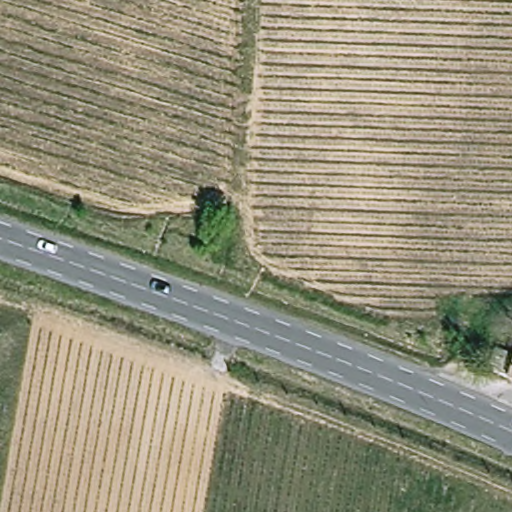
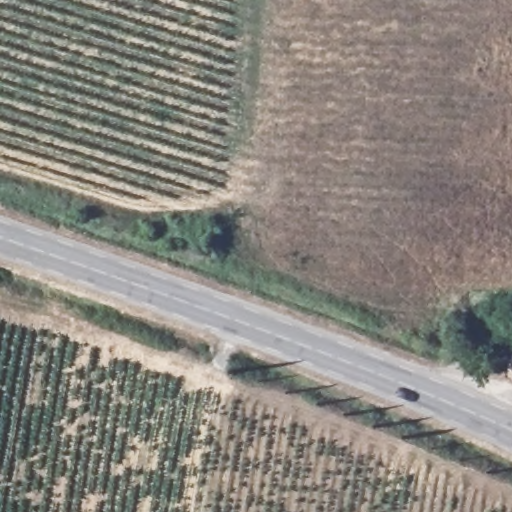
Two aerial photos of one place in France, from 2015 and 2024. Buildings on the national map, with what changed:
unchanged [(502,349),(512,352),(512,379),(493,372),(502,349)]

